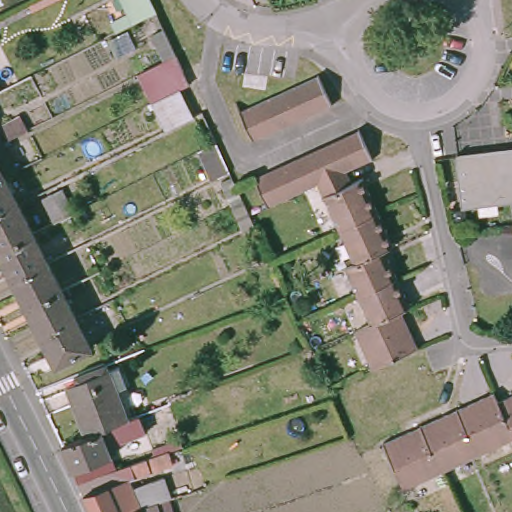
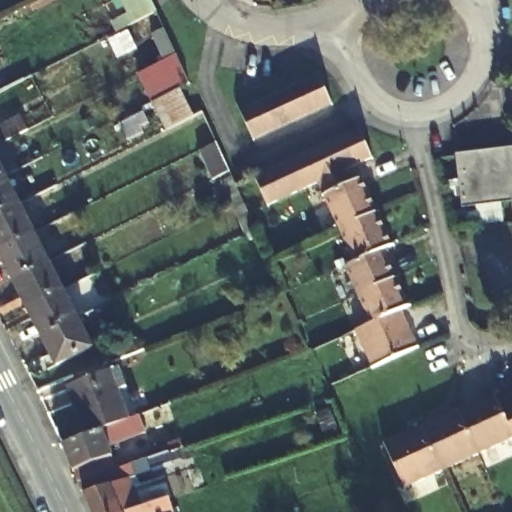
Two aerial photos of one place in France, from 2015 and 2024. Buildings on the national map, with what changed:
unchanged [(152,0),(156,9),(138,18),(129,0),(152,0)]
unchanged [(155,99),(140,71),(162,61),(149,31),(163,25),(177,53),(185,70),(190,81),(183,85),(196,112),(167,127),(155,99)]
unchanged [(248,106),(262,100),(275,94),(290,88),(302,82),(316,76),(329,104),(326,105),(315,110),(303,116),(289,123),(275,129),(267,133),(262,135),(253,139),(238,111),(248,106)]
unchanged [(0,124),(20,114),(27,128),(5,140),(0,130),(0,124)]
unchanged [(330,232),(310,187),(305,189),(300,191),(293,194),(280,200),(267,206),(254,177),(257,175),(267,171),(280,165),(290,160),(292,160),(307,153),(317,148),(323,145),(331,141),(344,136),(357,130),(370,160),(367,161),(358,165),(355,166),(345,171),(343,172),(349,184),(360,178),(377,212),(330,232)]
unchanged [(224,155),(230,169),(215,177),(200,146),(216,138),(224,155)]
unchanged [(17,168),(17,169),(3,175),(2,176),(0,176),(0,142),(2,141),(17,168)]
unchanged [(511,205),(460,211),(455,158),(512,151),(512,213),(511,205)]
unchanged [(257,226),(247,231),(233,202),(223,180),(233,174),(243,197),(245,199),(253,218),(257,226)]
unchanged [(16,204),(0,212),(0,176),(2,176),(16,204)]
unchanged [(0,212),(16,204),(31,233),(0,248),(0,212)]
unchanged [(377,212),(383,226),(391,242),(380,248),(382,250),(347,266),(330,232),(377,212)]
unchanged [(0,258),(0,248),(31,233),(46,262),(16,277),(11,280),(0,258)]
unchanged [(348,299),(335,272),(347,266),(382,250),(394,277),(348,299)]
unchanged [(30,305),(16,277),(46,262),(60,289),(30,305)]
unchanged [(402,294),(407,306),(398,310),(362,327),(348,299),(394,277),(402,294)]
unchanged [(30,305),(60,289),(75,318),(44,334),(30,305)]
unchanged [(417,350),(373,370),(354,330),(362,327),(398,310),(417,350)]
unchanged [(44,334),(75,318),(90,347),(54,366),(40,336),(44,334)]
unchanged [(87,436),(65,384),(73,380),(72,376),(102,364),(105,371),(115,367),(122,388),(113,392),(127,420),(87,436)]
unchanged [(475,459),(454,414),(488,398),(492,407),(495,405),(512,443),(475,459)]
unchanged [(512,398),(512,444),(512,443),(495,405),(512,398)]
unchanged [(475,459),(438,476),(418,430),(454,414),(475,459)]
unchanged [(148,435),(111,450),(112,454),(110,455),(115,467),(80,480),(76,469),(74,470),(63,446),(87,436),(127,420),(140,415),(148,435)]
unchanged [(402,492),(381,446),(418,430),(438,476),(402,492)]
unchanged [(130,477),(142,508),(129,512),(94,512),(80,480),(115,467),(132,461),(128,453),(150,445),(153,453),(167,449),(172,463),(130,477)]
unchanged [(162,512),(129,512),(142,508),(158,502),(162,512)]

